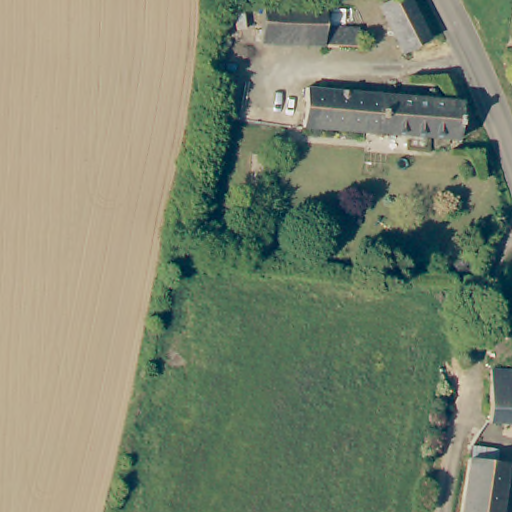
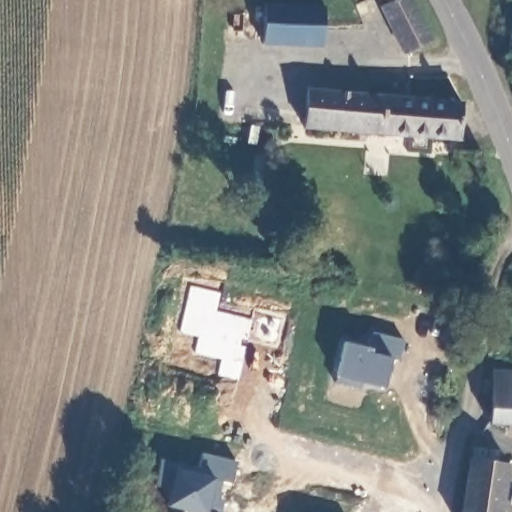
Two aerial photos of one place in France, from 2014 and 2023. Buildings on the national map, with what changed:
unchanged [(375,10),(382,7),(378,0),(394,0),(395,1),(397,0),(402,0),(424,45),(399,58),(375,10)]
unchanged [(262,43),(264,2),(324,6),(324,27),(359,29),(357,47),(262,43)]
unchanged [(307,88),(461,102),(458,140),(303,128),(307,88)]
unchanged [(500,315),(512,318),(509,337),(491,334),(500,315)]
new [(344,341),(368,347),(372,331),(403,338),(398,360),(390,358),(384,387),(361,382),(360,388),(334,382),(344,341)]
unchanged [(492,370),(512,371),(512,424),(490,423),(492,370)]
unchanged [(457,512),(465,458),(468,447),(487,449),(485,462),(503,464),(496,512),(457,512)]
new [(198,467),(202,453),(237,461),(231,483),(222,481),(215,512),(181,512),(182,508),(167,505),(170,489),(154,485),(161,458),(198,467)]

